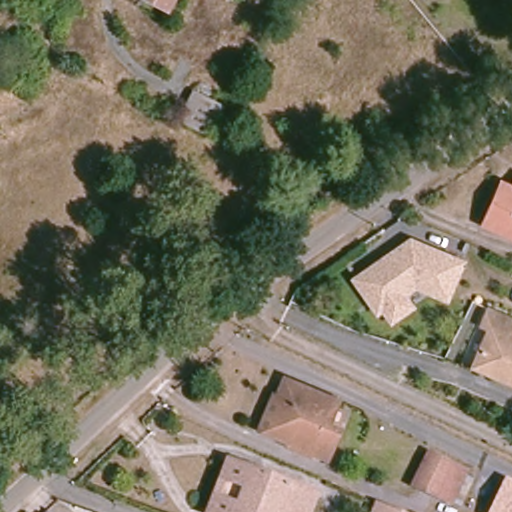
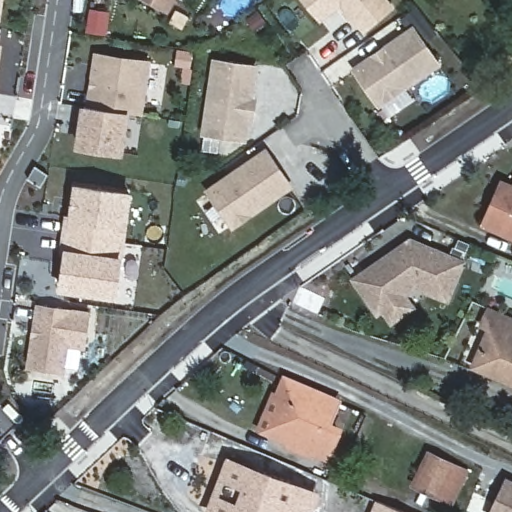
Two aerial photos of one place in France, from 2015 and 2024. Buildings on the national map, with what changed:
new [(2,19),(0,19),(0,0),(5,0),(2,19)]
unchanged [(168,9),(151,0),(172,0),(168,9)]
new [(340,5),(320,21),(302,0),(387,0),(394,7),(363,32),(352,20),(349,22),(341,13),(344,10),(340,5)]
new [(378,109),(350,68),(413,24),(442,65),(378,109)]
new [(129,114),(123,155),(75,149),(81,105),(86,105),(93,51),(151,60),(142,115),(129,114)]
new [(253,97),(258,99),(255,120),(249,120),(246,142),(200,135),(212,57),(257,65),(253,97)]
demolished [(192,91),(222,106),(208,135),(178,120),(192,91)]
new [(233,227),(209,190),(265,151),(289,186),(233,227)]
unchanged [(505,185),(512,188),(512,236),(488,226),(505,185)]
new [(68,221),(72,221),(77,190),(130,198),(123,246),(66,238),(68,221)]
unchanged [(450,305),(414,289),(407,295),(416,310),(390,328),(379,313),(374,316),(348,278),(410,237),(465,260),(450,305)]
new [(67,256),(63,255),(66,238),(123,246),(116,295),(63,287),(67,256)]
new [(67,347),(64,373),(26,367),(35,303),(91,310),(85,350),(67,347)]
unchanged [(478,366),(492,333),(484,330),(491,313),(512,322),(512,386),(507,383),(476,371),(478,366)]
unchanged [(262,429),(284,378),(337,401),(327,425),(341,430),(328,458),(262,429)]
unchanged [(429,453),(461,468),(446,501),(413,487),(429,453)]
unchanged [(241,508),(250,485),(229,478),(235,464),(301,489),(292,512),(216,512),(221,500),(241,508)]
unchanged [(512,480),(512,512),(488,512),(505,476),(512,480)]
unchanged [(319,496),(313,512),(292,512),(301,489),(319,496)]
unchanged [(399,512),(375,512),(379,503),(399,512)]

